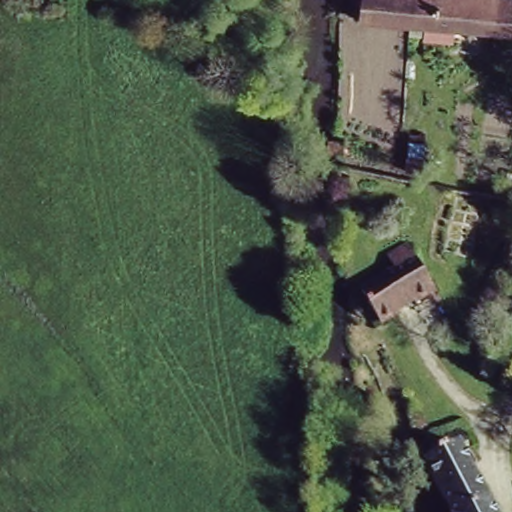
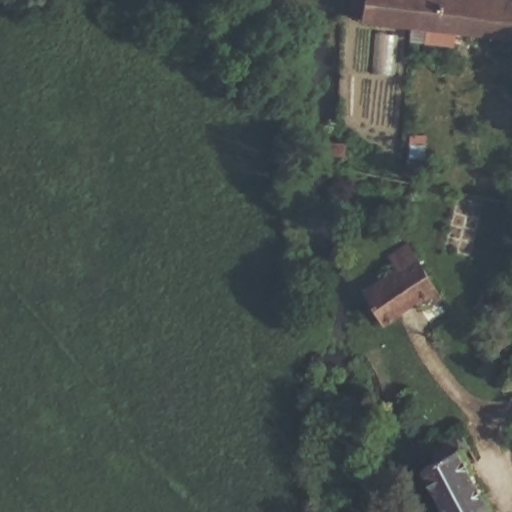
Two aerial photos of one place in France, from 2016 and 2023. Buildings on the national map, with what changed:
unchanged [(362,15),(364,0),(423,0),(418,24),(362,15)]
unchanged [(457,30),(418,24),(423,0),(495,0),(488,35),(457,30)]
unchanged [(488,35),(495,0),(507,0),(512,1),(512,38),(488,35)]
unchanged [(455,41),(466,42),(461,57),(414,51),(418,24),(457,30),(455,41)]
unchanged [(348,267),(415,246),(438,293),(408,307),(400,292),(362,306),(348,267)]
unchanged [(420,455),(438,447),(430,428),(464,415),(473,432),(462,439),(493,512),(447,512),(420,455)]

